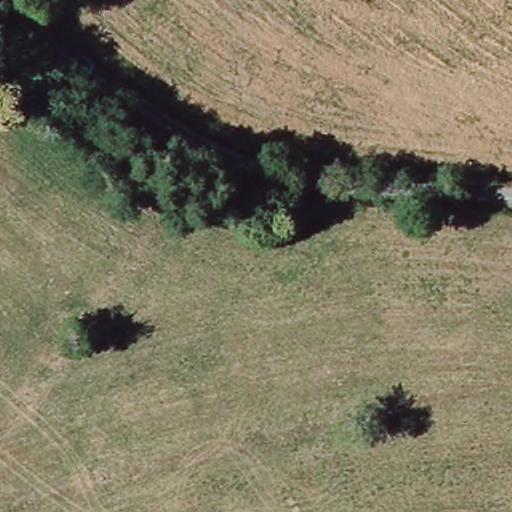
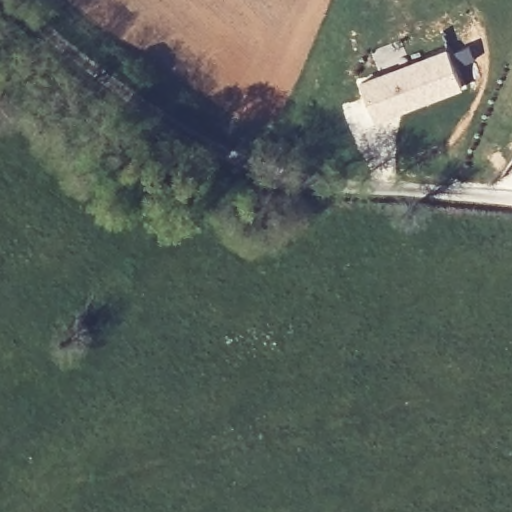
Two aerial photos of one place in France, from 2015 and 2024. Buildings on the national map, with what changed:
new [(447,52),(461,89),(375,121),(360,83),(447,52)]

